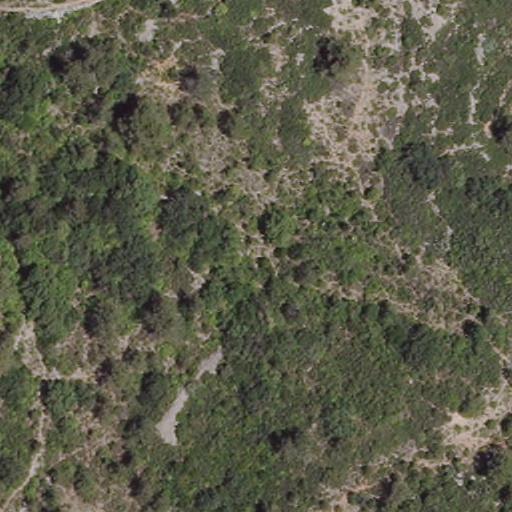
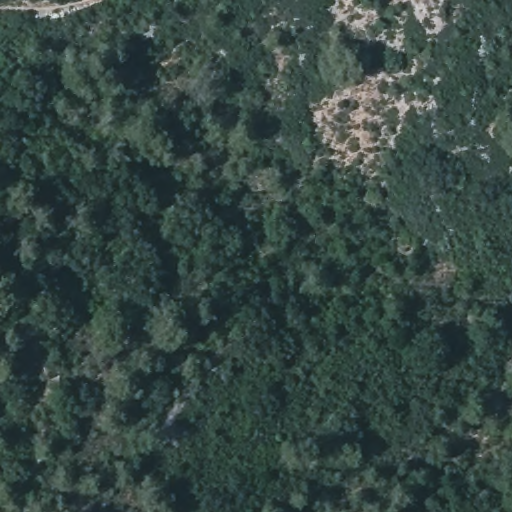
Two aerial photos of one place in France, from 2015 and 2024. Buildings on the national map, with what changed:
[]

